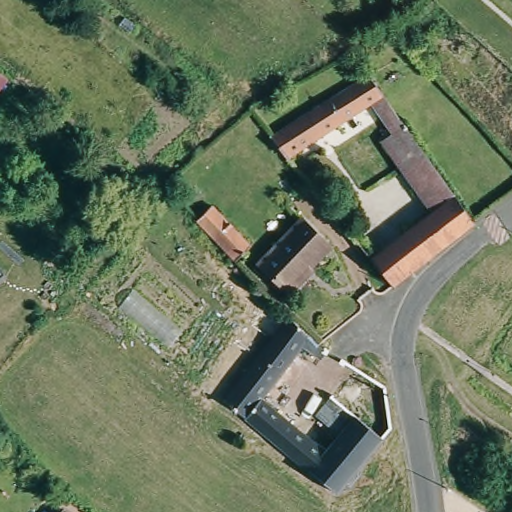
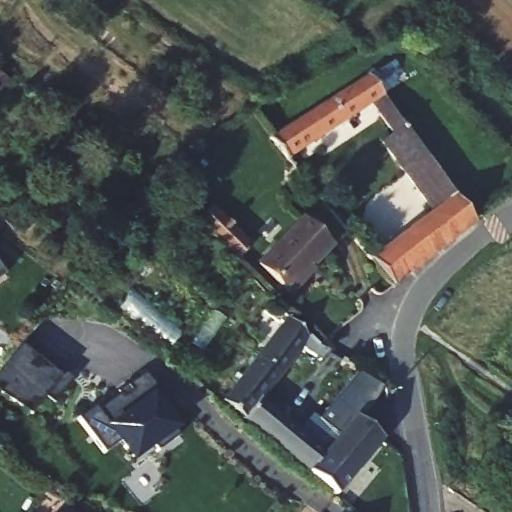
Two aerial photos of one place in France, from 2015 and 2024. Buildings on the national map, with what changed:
unchanged [(369,76),(374,81),(405,126),(394,135),(372,105),(294,156),(297,160),(292,163),(290,161),(282,151),(270,138),(369,76)]
unchanged [(402,238),(434,215),(382,143),(394,135),(405,126),(416,141),(422,149),(473,222),(475,224),(422,265),(411,274),(400,283),(394,287),(372,261),(390,248),(402,238)]
unchanged [(212,208),(250,248),(235,262),(197,222),(212,208)]
unchanged [(307,222),(334,250),(305,277),(307,279),(291,294),(262,265),(307,222)]
unchanged [(0,274),(0,272),(1,273),(0,274)]
unchanged [(297,322),(298,323),(315,340),(318,342),(324,346),(333,352),(327,361),(308,347),(267,400),(330,452),(315,471),(227,400),(292,318),(297,322)]
new [(48,366),(51,362),(73,379),(54,404),(45,397),(30,416),(0,394),(0,371),(21,345),(48,366)]
new [(97,405),(98,407),(120,391),(124,396),(132,390),(128,384),(145,371),(160,392),(162,390),(175,407),(164,415),(180,435),(157,451),(152,443),(134,457),(122,440),(105,452),(80,417),(97,405)]
unchanged [(315,471),(330,452),(343,436),(321,416),(339,395),(362,414),(357,419),(386,441),(342,493),(315,471)]
unchanged [(73,512),(69,512),(70,510),(73,512)]

